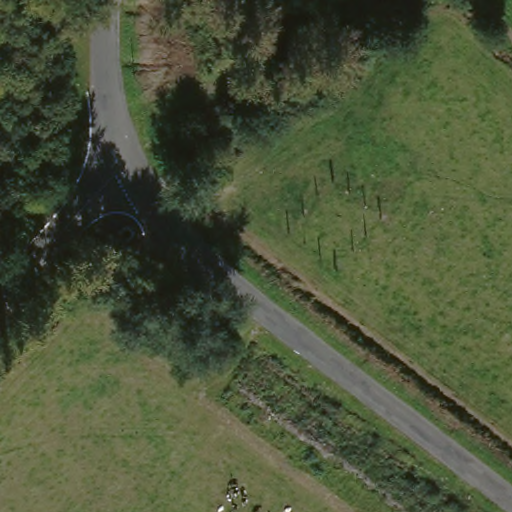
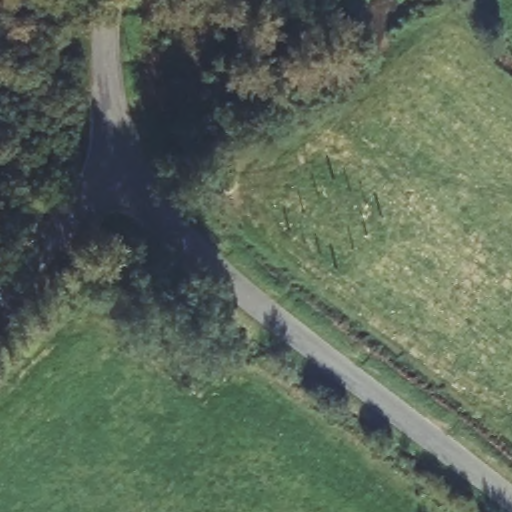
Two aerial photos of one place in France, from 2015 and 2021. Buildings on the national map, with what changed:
unchanged [(298,35),(292,45),(265,29),(272,19),(298,35)]

